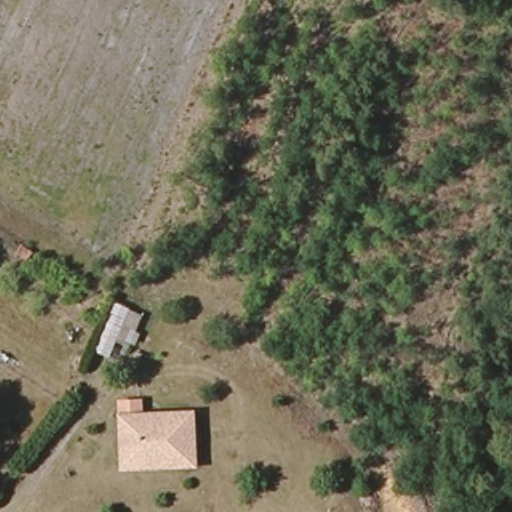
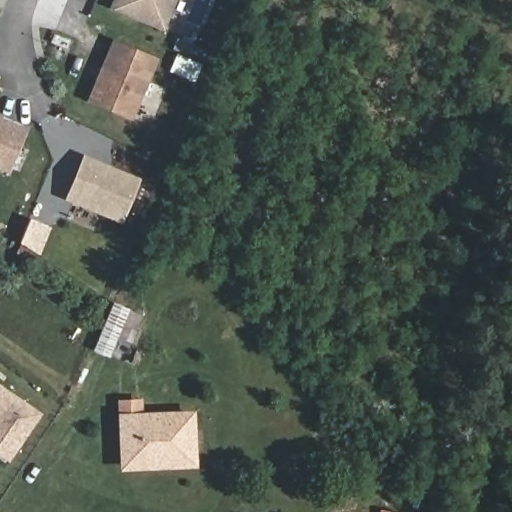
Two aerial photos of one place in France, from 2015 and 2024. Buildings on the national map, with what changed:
new [(109,8),(112,0),(176,0),(164,31),(109,8)]
new [(132,120),(87,101),(113,39),(158,58),(132,120)]
new [(0,169),(0,117),(27,128),(8,173),(0,169)]
new [(65,198),(83,154),(141,179),(122,223),(65,198)]
unchanged [(108,358),(95,352),(114,306),(127,314),(108,358)]
new [(44,417),(14,461),(0,451),(0,387),(44,417)]
unchanged [(193,465),(123,467),(121,419),(120,402),(139,401),(141,419),(192,419),(193,465)]

